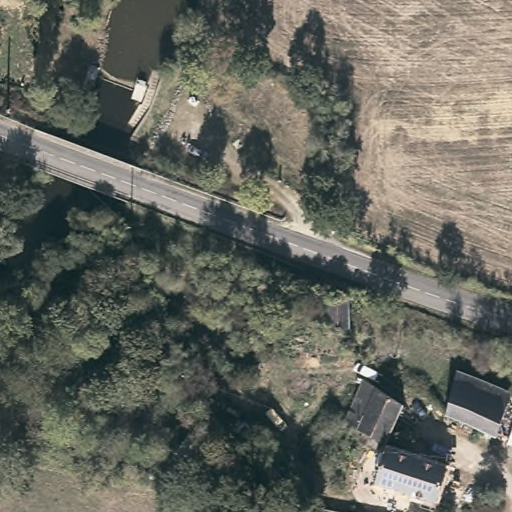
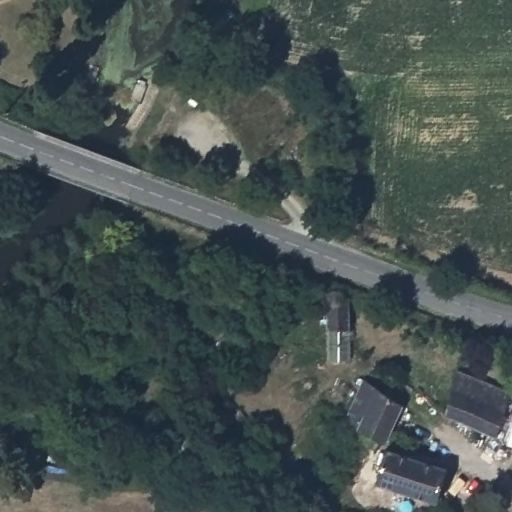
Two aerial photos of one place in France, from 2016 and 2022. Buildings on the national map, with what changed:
unchanged [(343,300),(349,301),(350,331),(329,331),(328,301),(333,300),(343,300)]
unchanged [(481,382),(464,425),(446,417),(458,372),(481,382)]
unchanged [(404,407),(386,446),(362,432),(359,432),(364,420),(351,412),(366,381),(404,407)]
unchanged [(512,395),(498,440),(464,425),(481,382),(512,395)]
unchanged [(446,472),(436,504),(378,485),(388,452),(446,472)]
unchanged [(315,488),(310,502),(288,492),(294,479),(315,488)]

